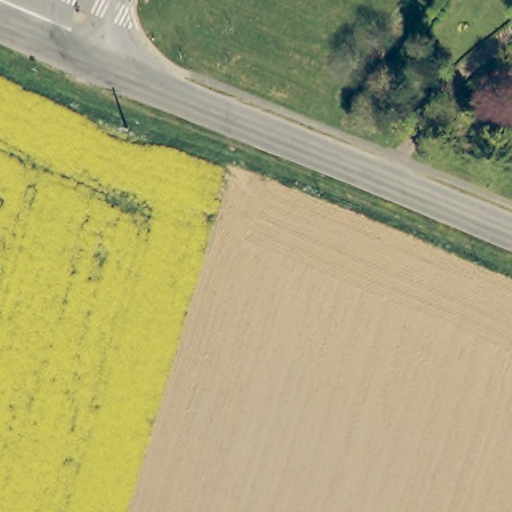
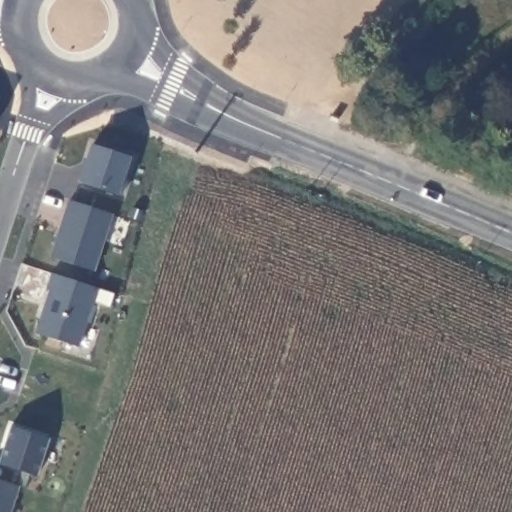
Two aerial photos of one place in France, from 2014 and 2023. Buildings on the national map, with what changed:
new [(122,194),(80,182),(92,144),(133,159),(122,194)]
new [(97,263),(55,250),(74,193),(115,206),(97,263)]
new [(82,340),(39,326),(53,283),(50,282),(55,266),(101,281),(82,340)]
new [(36,477),(0,465),(0,457),(9,426),(48,439),(36,477)]
new [(18,487),(10,512),(0,512),(0,481),(18,487)]

